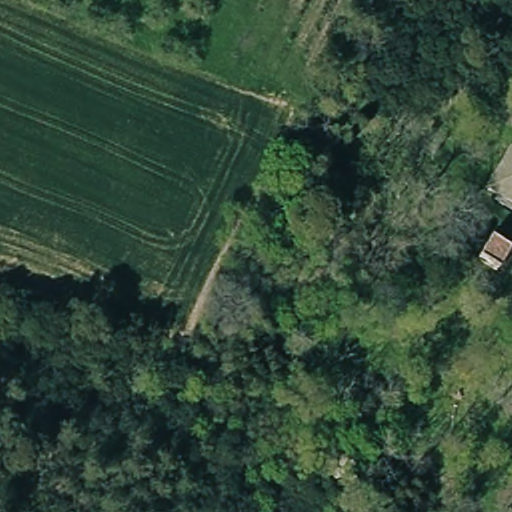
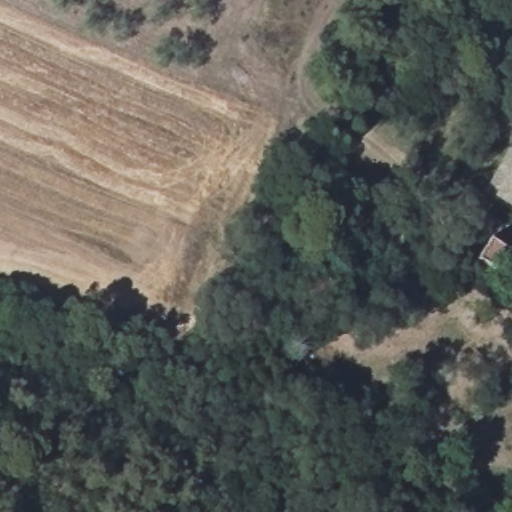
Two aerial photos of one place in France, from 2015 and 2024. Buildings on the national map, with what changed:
unchanged [(503,153),(512,157),(512,212),(481,196),(503,153)]
unchanged [(477,261),(491,238),(509,248),(496,272),(477,261)]

